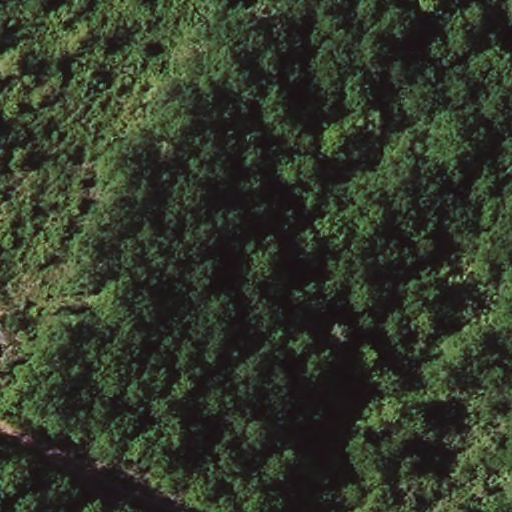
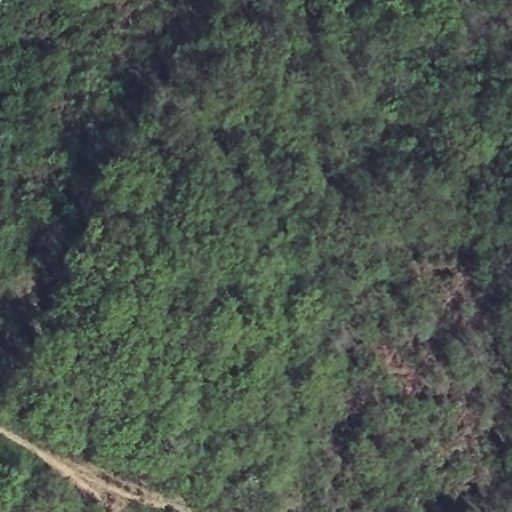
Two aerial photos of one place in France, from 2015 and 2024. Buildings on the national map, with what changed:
[]

